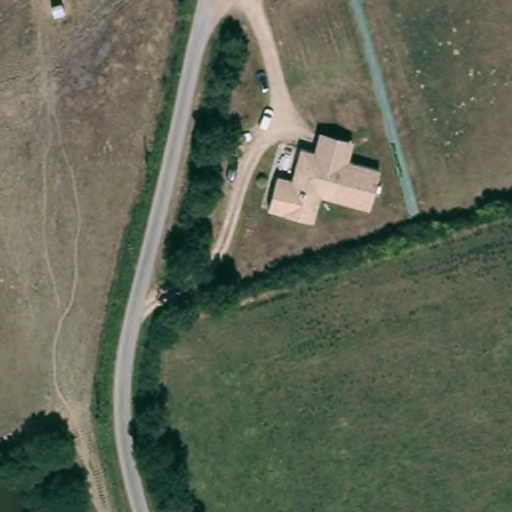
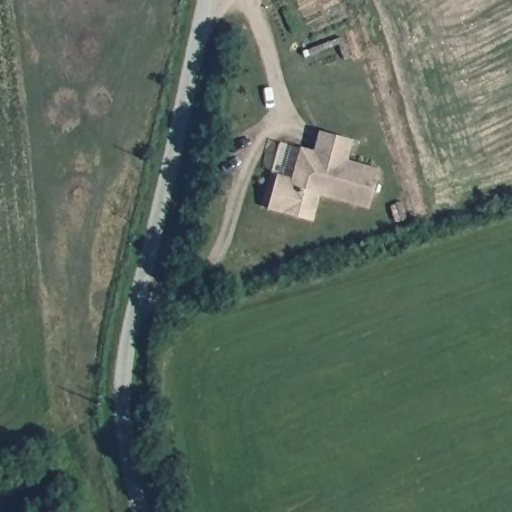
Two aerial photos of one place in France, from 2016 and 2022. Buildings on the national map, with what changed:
unchanged [(320,195),(314,220),(268,209),(276,174),(293,177),(301,145),(315,149),(320,129),(354,137),(349,160),(380,169),(369,207),(320,195)]

